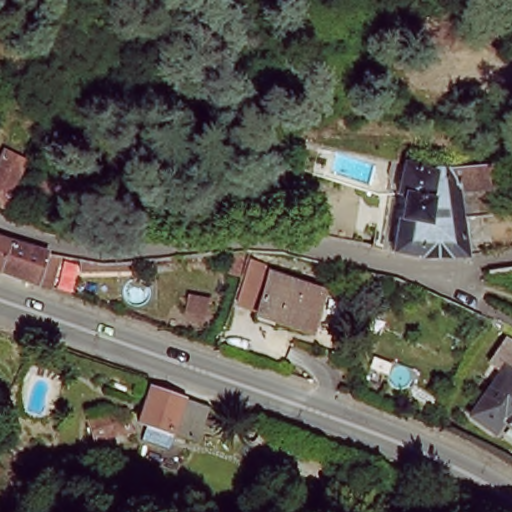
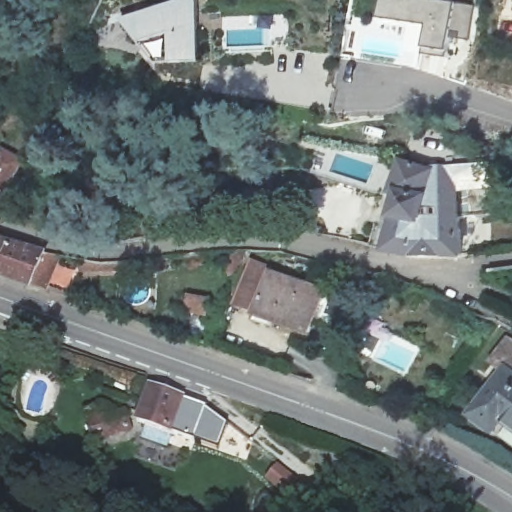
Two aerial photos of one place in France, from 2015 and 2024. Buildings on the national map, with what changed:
new [(183,0),(198,0),(201,62),(156,66),(122,21),(183,0)]
new [(473,9),(468,43),(447,40),(444,55),(368,44),(375,0),(417,0),(473,9)]
unchanged [(3,208),(0,207),(0,164),(5,153),(25,162),(3,208)]
unchanged [(419,252),(381,244),(384,230),(404,231),(410,198),(406,192),(390,191),(397,156),(444,165),(502,160),(503,184),(469,188),(471,214),(475,250),(453,252),(419,252)]
unchanged [(0,235),(7,238),(0,255),(0,235)]
unchanged [(35,279),(0,267),(0,255),(7,238),(45,249),(35,279)]
unchanged [(226,271),(231,253),(249,251),(240,278),(226,271)]
unchanged [(321,291),(307,331),(255,313),(270,272),(321,291)]
unchanged [(512,369),(512,440),(468,406),(505,363),(512,369)]
unchanged [(203,412),(191,445),(135,424),(146,392),(203,412)]
unchanged [(124,427),(93,435),(88,416),(119,409),(124,427)]

